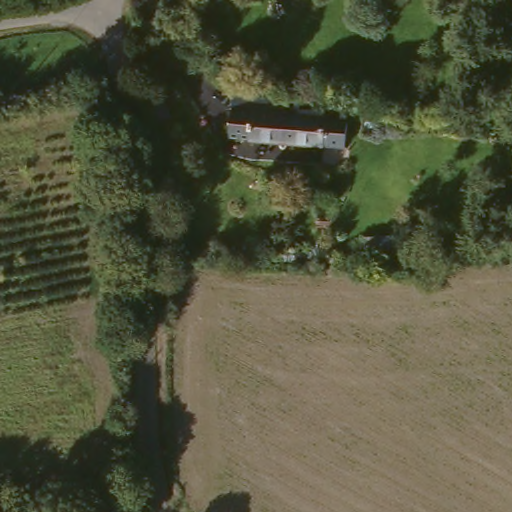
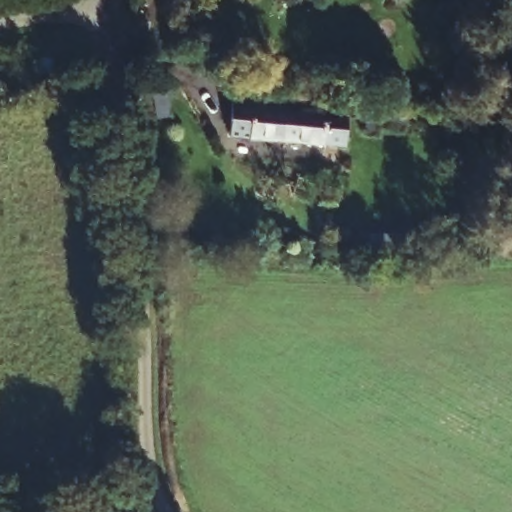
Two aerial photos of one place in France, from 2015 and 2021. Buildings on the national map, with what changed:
unchanged [(352,2),(328,1),(327,0),(352,0),(352,2)]
unchanged [(136,14),(146,14),(144,35),(134,35),(136,14)]
unchanged [(250,137),(252,82),(265,84),(290,87),(294,88),(299,89),(298,110),(297,140),(250,137)]
unchanged [(349,114),(347,142),(297,140),(298,110),(349,114)]
unchanged [(395,121),(392,132),(370,127),(366,141),(357,138),(364,114),(395,121)]

